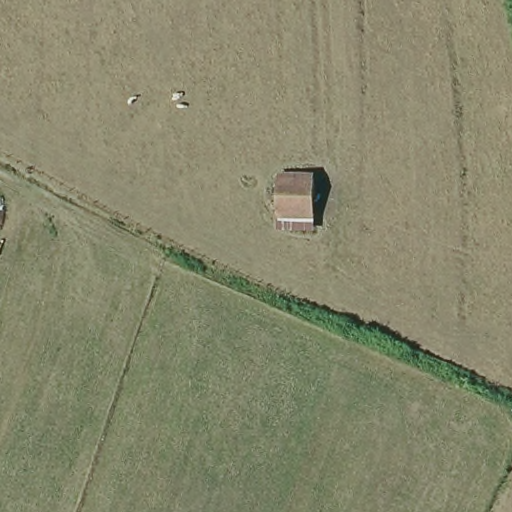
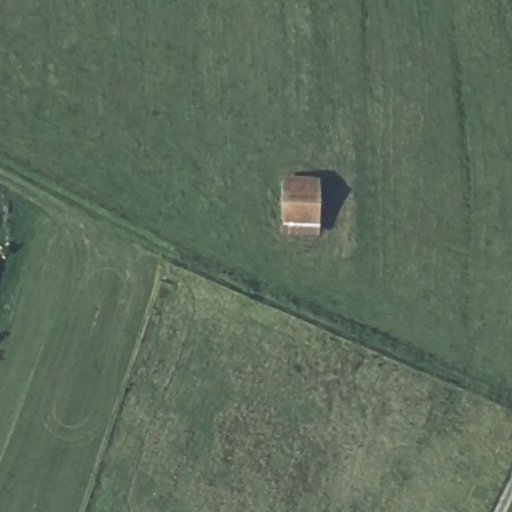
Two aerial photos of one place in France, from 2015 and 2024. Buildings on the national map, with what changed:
unchanged [(282,176),(320,175),(317,235),(280,234),(282,176)]

